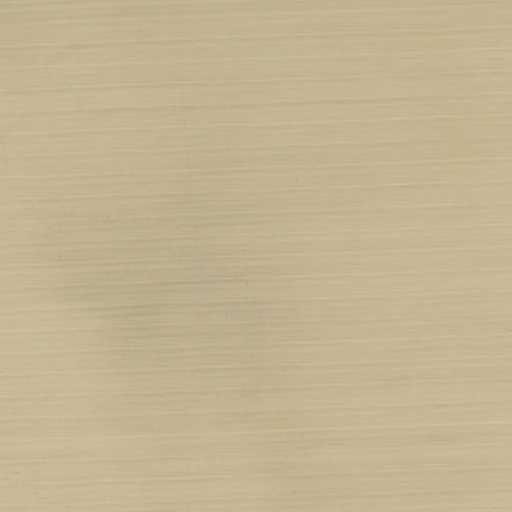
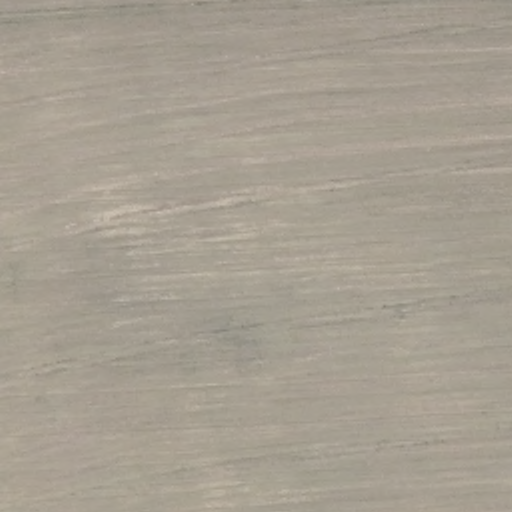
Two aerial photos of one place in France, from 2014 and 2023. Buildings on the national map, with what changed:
[]

